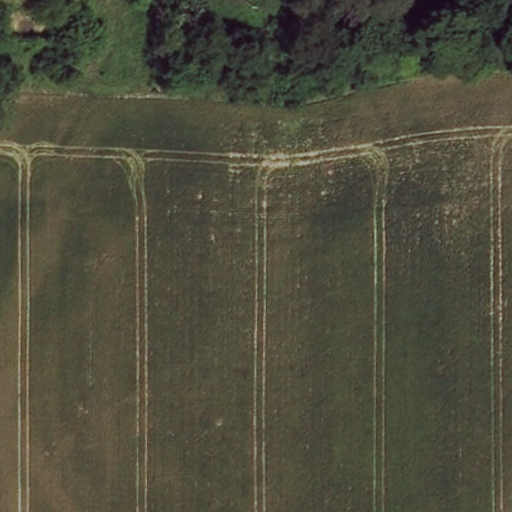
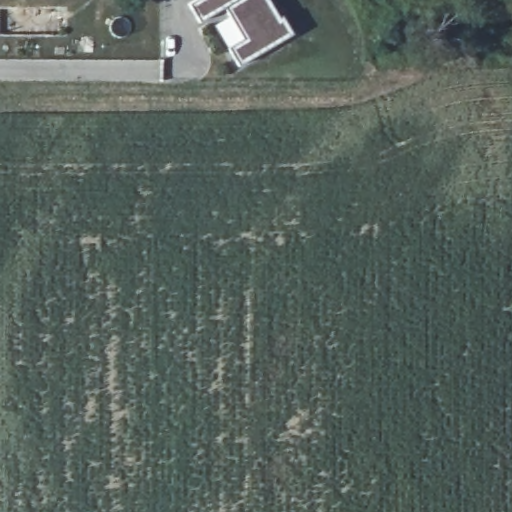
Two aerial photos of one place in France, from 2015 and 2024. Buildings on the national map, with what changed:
new [(200,22),(190,5),(198,0),(270,0),(281,19),(284,17),(295,34),(239,66),(229,49),(214,26),(230,16),(225,7),(200,22)]

